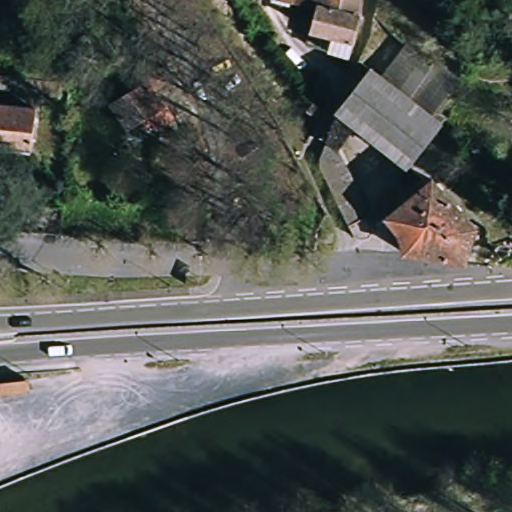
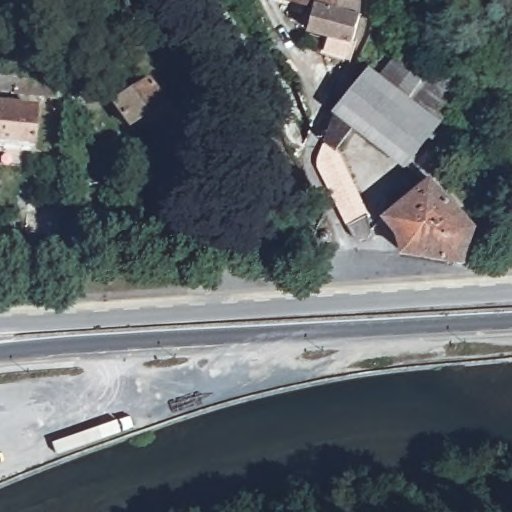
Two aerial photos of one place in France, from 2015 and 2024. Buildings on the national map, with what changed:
unchanged [(310,38),(315,15),(279,0),(364,0),(349,63),(324,61),(329,39),(310,38)]
unchanged [(353,136),(339,149),(328,135),(333,121),(334,113),(368,63),(380,68),(407,35),(455,79),(430,114),(443,127),(402,166),(353,136)]
unchanged [(16,87),(17,71),(26,72),(61,75),(60,91),(16,87)]
unchanged [(167,105),(170,121),(155,130),(149,121),(128,131),(112,104),(147,84),(167,105)]
unchanged [(0,150),(0,108),(37,113),(32,154),(0,150)]
unchanged [(404,256),(387,214),(433,175),(485,230),(467,271),(404,256)]
unchanged [(34,224),(35,201),(65,202),(65,225),(34,224)]

